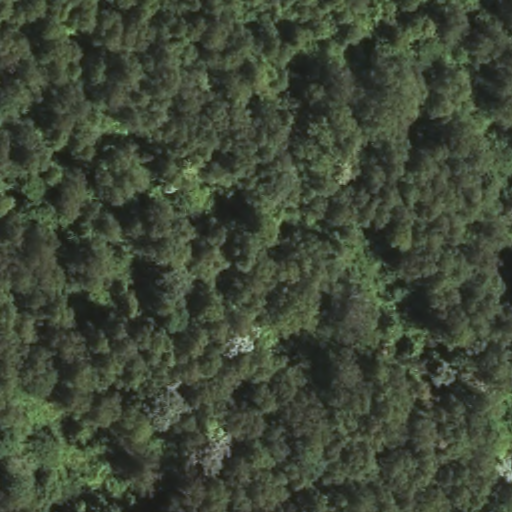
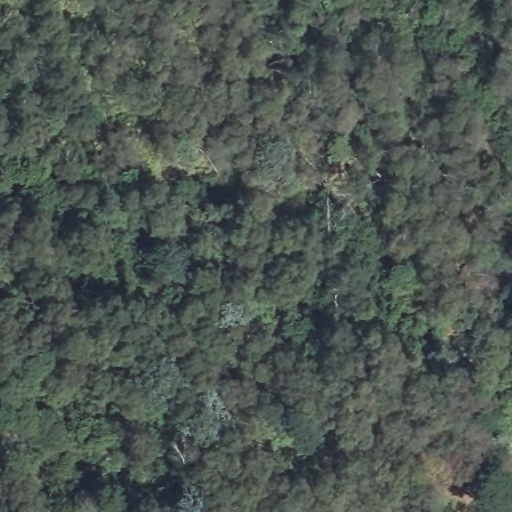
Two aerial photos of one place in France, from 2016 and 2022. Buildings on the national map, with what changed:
[]

